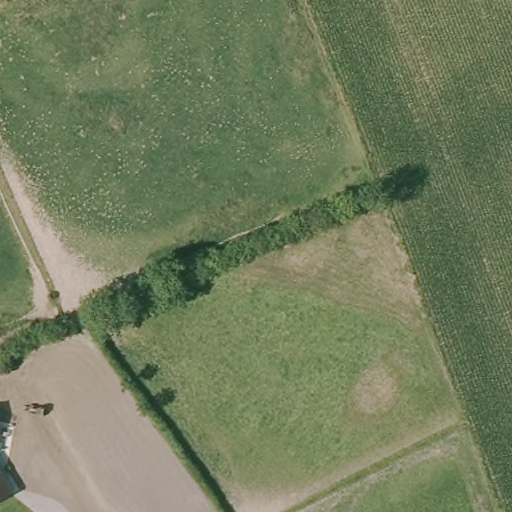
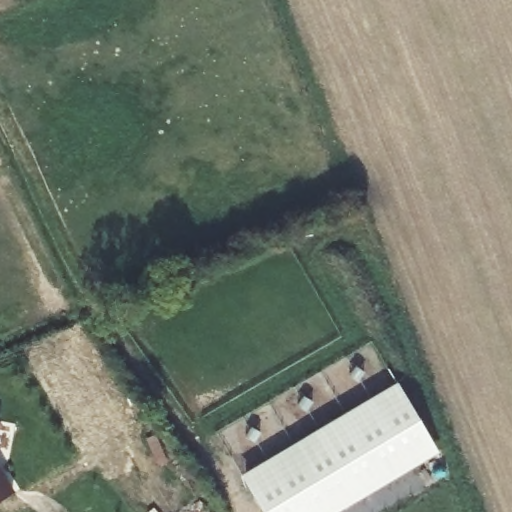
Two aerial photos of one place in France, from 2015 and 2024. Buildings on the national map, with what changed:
new [(439,453),(339,512),(261,512),(241,478),(398,384),(439,453)]
unchanged [(0,471),(13,494),(0,501),(0,471)]

